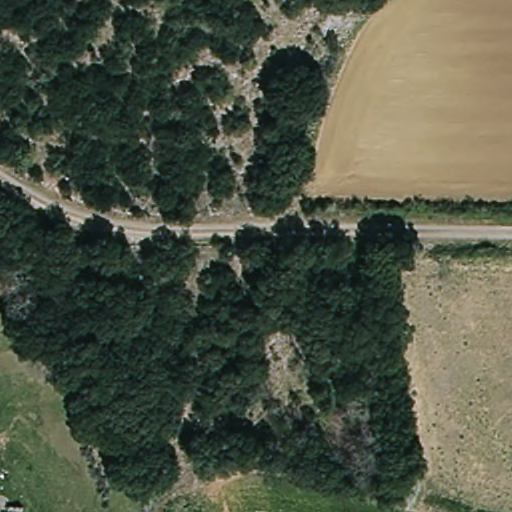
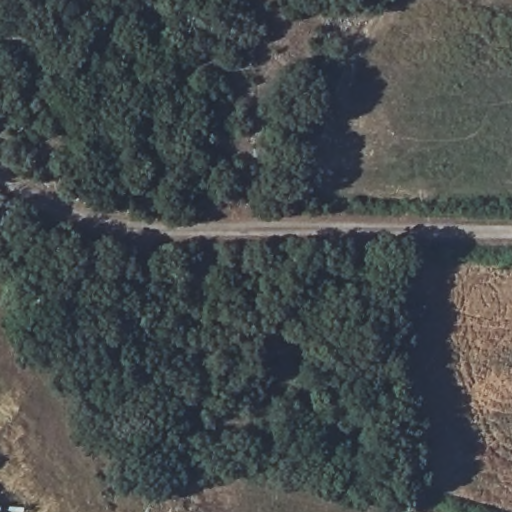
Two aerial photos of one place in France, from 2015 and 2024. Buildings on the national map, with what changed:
[]

